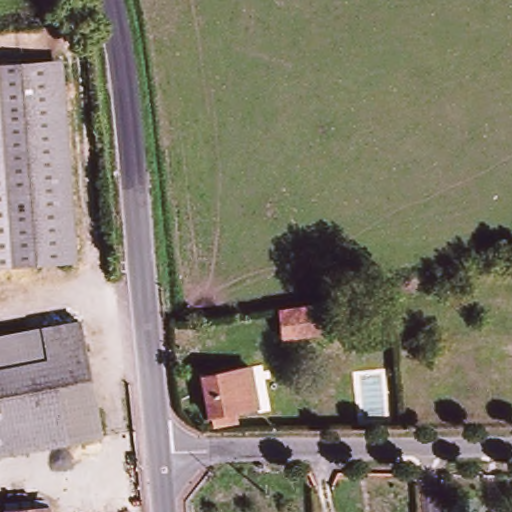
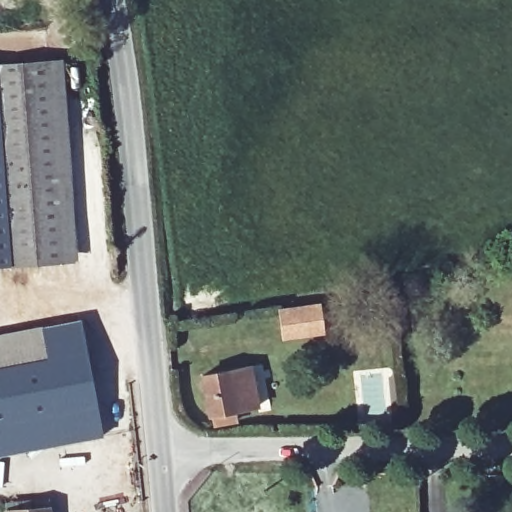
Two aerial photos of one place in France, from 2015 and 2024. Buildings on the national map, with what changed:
unchanged [(78,261),(0,264),(0,62),(68,60),(78,261)]
unchanged [(322,331),(283,336),(280,310),(318,305),(322,331)]
unchanged [(86,347),(51,353),(12,361),(0,364),(0,335),(82,320),(86,347)]
unchanged [(51,353),(86,347),(93,385),(0,403),(0,364),(12,361),(51,353)]
unchanged [(233,410),(235,420),(214,424),(212,412),(209,413),(202,375),(250,366),(257,405),(233,410)]
unchanged [(0,455),(0,403),(93,385),(104,437),(0,455)]
unchanged [(49,512),(28,512),(49,510),(49,512)]

